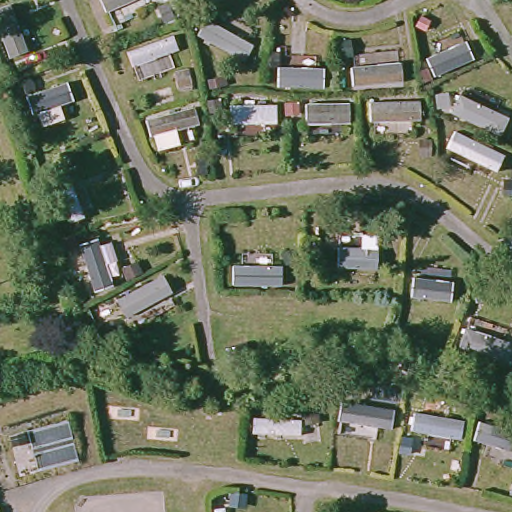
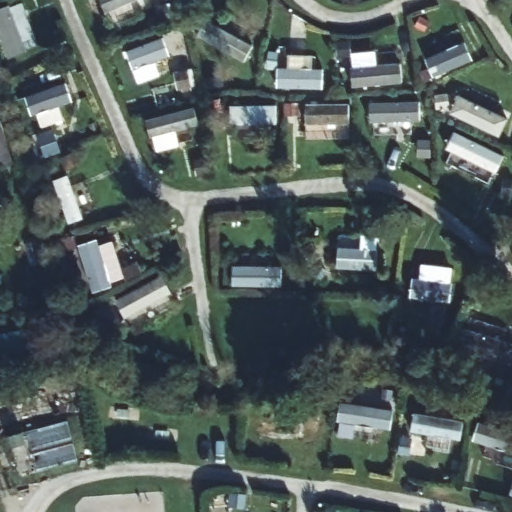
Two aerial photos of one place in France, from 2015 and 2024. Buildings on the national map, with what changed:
unchanged [(78,463),(22,478),(8,434),(67,420),(78,463)]

